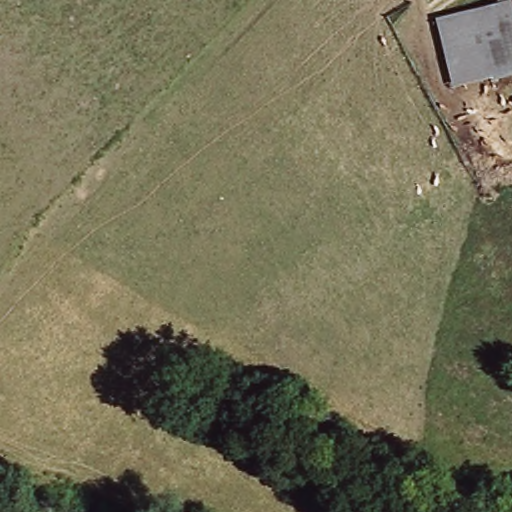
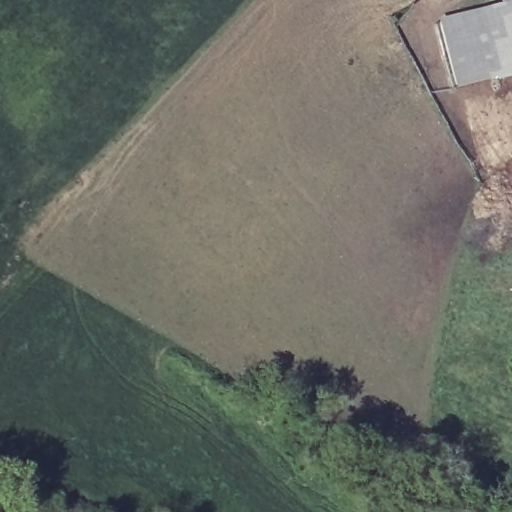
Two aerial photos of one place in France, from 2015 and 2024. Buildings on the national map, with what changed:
unchanged [(508,8),(506,0),(512,0),(512,7),(508,8)]
unchanged [(508,8),(512,7),(512,77),(496,81),(480,15),(508,8)]
unchanged [(480,15),(496,81),(456,90),(440,24),(480,15)]

